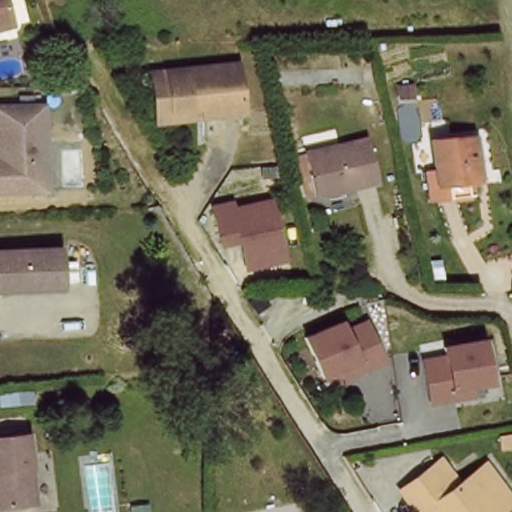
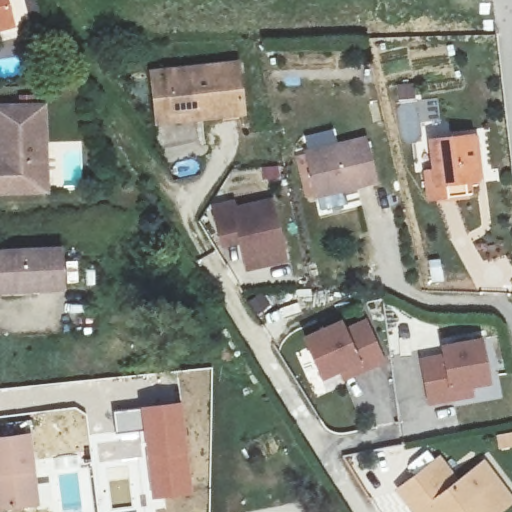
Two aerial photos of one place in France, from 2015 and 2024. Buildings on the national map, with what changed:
unchanged [(0,0),(8,0),(13,18),(0,22),(0,0)]
unchanged [(239,60),(245,113),(202,117),(201,107),(172,109),(168,66),(239,60)]
unchanged [(172,109),(201,107),(202,117),(155,122),(152,67),(168,66),(172,109)]
new [(11,107),(0,107),(0,77),(11,77),(11,107)]
unchanged [(35,195),(0,196),(0,111),(48,111),(49,154),(50,195),(35,195)]
unchanged [(437,198),(435,173),(443,171),(440,137),(482,132),(487,176),(479,178),(480,192),(437,198)]
unchanged [(303,151),(315,148),(374,134),(382,178),(322,191),(312,193),(303,151)]
unchanged [(247,268),(245,259),(241,240),(223,243),(223,244),(222,241),(216,207),(235,204),(237,209),(274,202),(283,251),(285,261),(247,268)]
unchanged [(33,295),(0,298),(0,253),(70,249),(72,284),(33,288),(33,295)]
unchanged [(345,372),(327,380),(308,341),(344,325),(348,334),(369,324),(372,331),(387,362),(365,372),(348,380),(345,372)]
unchanged [(484,338),(493,380),(474,384),(477,394),(433,403),(426,368),(425,360),(447,355),(445,346),(484,338)]
new [(149,499),(142,460),(92,466),(88,434),(114,431),(112,410),(139,405),(182,399),(193,494),(149,499)]
unchanged [(0,469),(0,436),(36,432),(42,502),(8,505),(0,506),(0,469)]
unchanged [(403,486),(445,456),(462,482),(488,464),(512,497),(512,504),(501,512),(421,512),(415,503),(403,486)]

